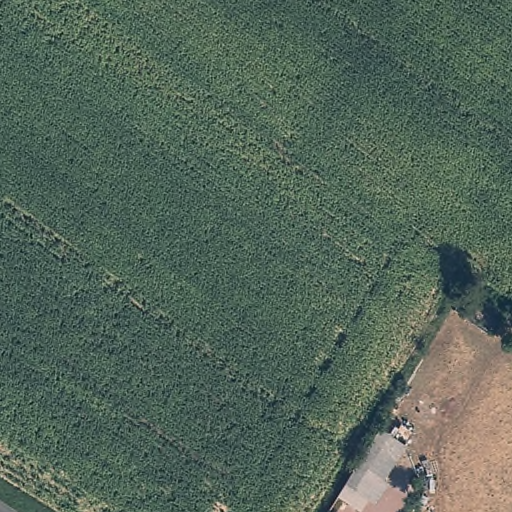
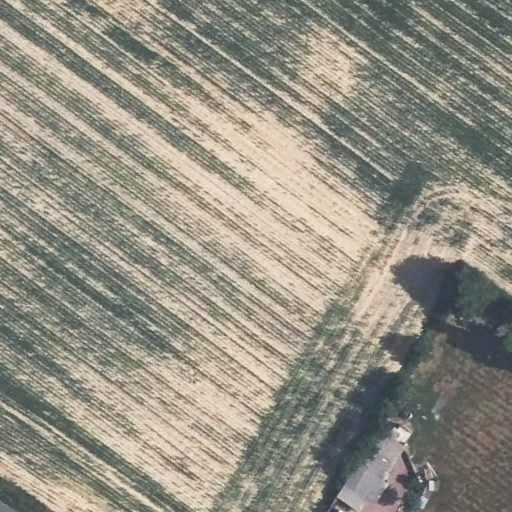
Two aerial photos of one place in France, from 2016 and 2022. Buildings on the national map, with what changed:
unchanged [(385,482),(390,485),(376,507),(365,502),(360,512),(333,497),(377,427),(408,447),(385,482)]

